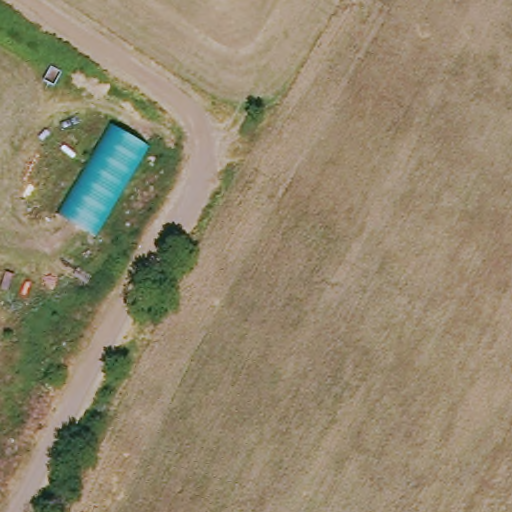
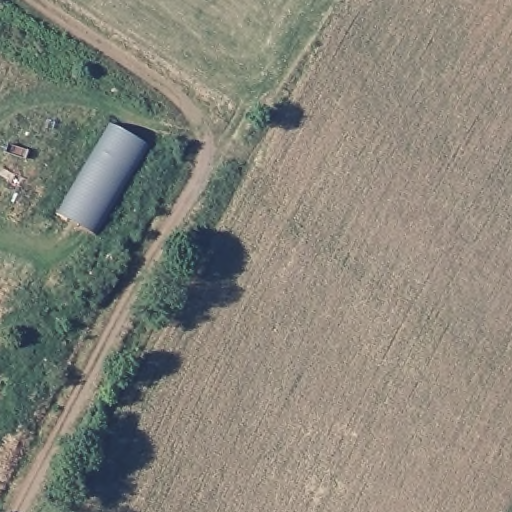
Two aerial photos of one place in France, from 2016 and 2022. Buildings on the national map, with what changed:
unchanged [(147,149),(97,240),(57,217),(109,127),(147,149)]

